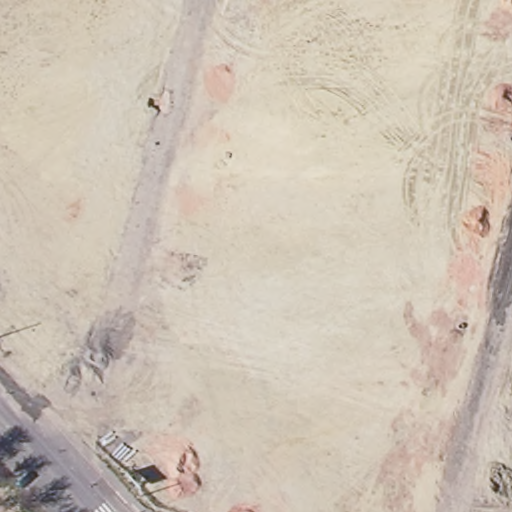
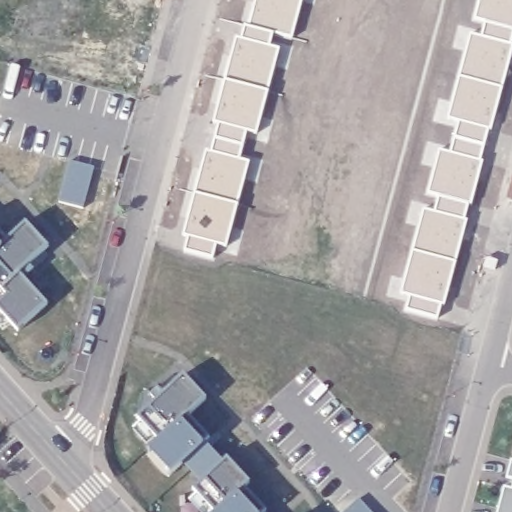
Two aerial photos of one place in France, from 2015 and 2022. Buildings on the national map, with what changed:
new [(277,32),(271,43),(280,46),(259,130),(249,129),(240,156),(249,160),(227,245),(219,242),(214,256),(187,250),(190,235),(185,234),(207,150),(211,151),(221,122),(215,121),(237,38),(240,37),(245,25),(250,25),(258,0),(302,0),(292,38),(277,32)]
new [(512,43),(512,56),(490,128),(485,127),(479,159),(483,160),(472,204),(467,204),(464,220),(467,221),(445,305),(440,305),(437,317),(406,311),(410,296),(402,292),(423,209),(433,211),(437,196),(427,195),(439,150),(448,154),(458,120),(450,119),(470,33),(480,36),(484,25),(473,19),(478,0),(512,0),(512,39),(511,43),(512,43)]
demolished [(4,54),(30,81),(0,109),(0,57),(4,54)]
new [(93,167),(82,208),(59,201),(70,161),(93,167)]
new [(0,311),(0,291),(1,290),(0,289),(0,233),(5,239),(24,223),(47,246),(19,273),(45,305),(16,329),(0,311)]
new [(141,394),(147,390),(155,398),(182,375),(205,398),(189,415),(209,440),(194,453),(212,472),(227,460),(248,482),(245,486),(267,511),(265,512),(212,512),(194,490),(200,483),(182,463),(174,470),(152,446),(157,440),(137,416),(141,394)]
new [(510,460),(512,460),(512,480),(505,478),(510,460)]
new [(503,486),(511,487),(512,484),(512,512),(496,512),(503,486)]
new [(370,512),(344,512),(359,499),(370,512)]

